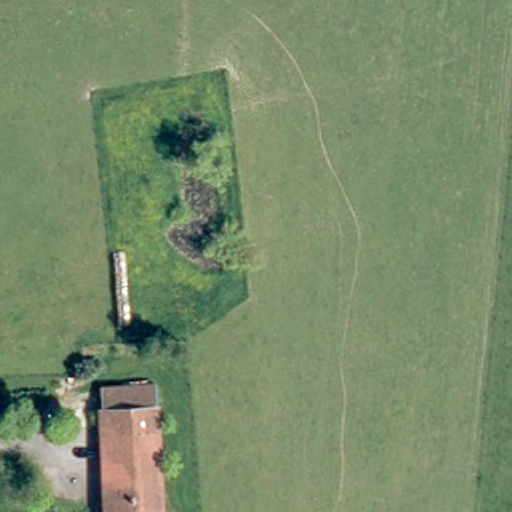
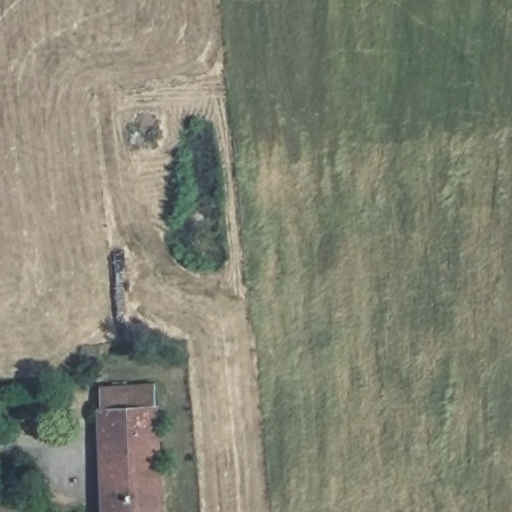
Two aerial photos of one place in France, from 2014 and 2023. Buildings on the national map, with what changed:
unchanged [(107,401),(163,398),(164,420),(107,420),(107,401)]
unchanged [(164,420),(165,512),(110,512),(107,420),(164,420)]

